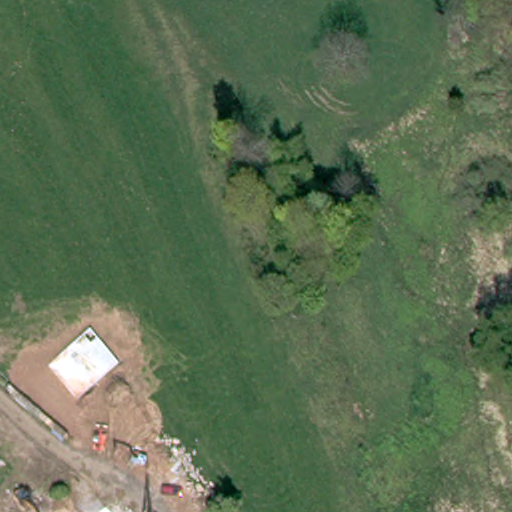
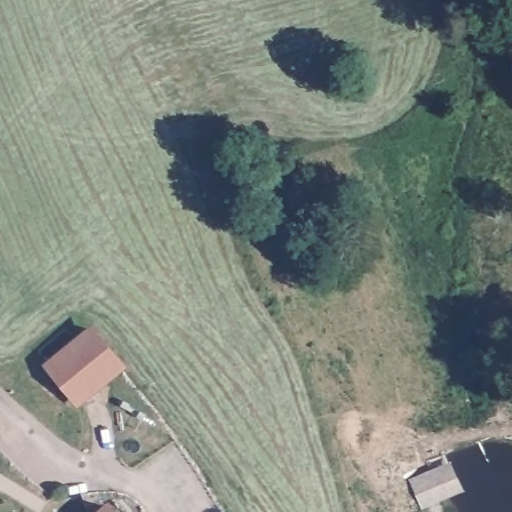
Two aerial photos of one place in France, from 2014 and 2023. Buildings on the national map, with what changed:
new [(120,365),(77,402),(48,366),(91,330),(120,365)]
new [(449,499),(422,511),(408,480),(450,462),(465,493),(449,499)]
unchanged [(114,512),(102,512),(109,506),(114,512)]

